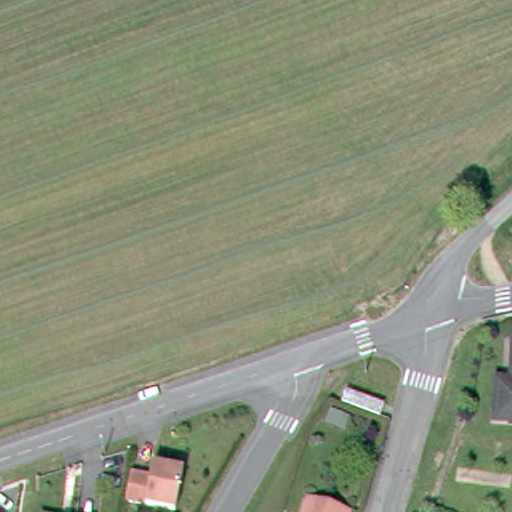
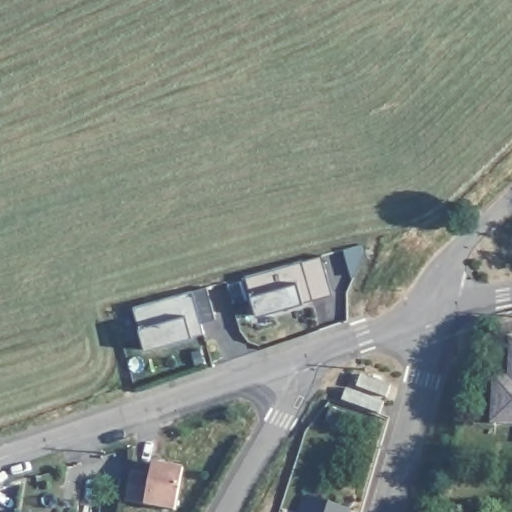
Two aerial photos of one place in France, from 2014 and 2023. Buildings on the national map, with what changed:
new [(301,260),(313,300),(303,301),(256,314),(250,293),(245,277),(301,260)]
new [(203,333),(191,336),(145,350),(140,325),(134,307),(192,291),(203,333)]
unchanged [(512,422),(495,420),(496,395),(497,380),(511,381),(512,373),(512,422)]
unchanged [(346,390),(384,402),(380,415),(342,401),(346,390)]
unchanged [(125,501),(131,471),(151,475),(153,463),(184,468),(176,510),(125,501)]
unchanged [(350,510),(349,512),(304,512),(310,496),(350,510)]

